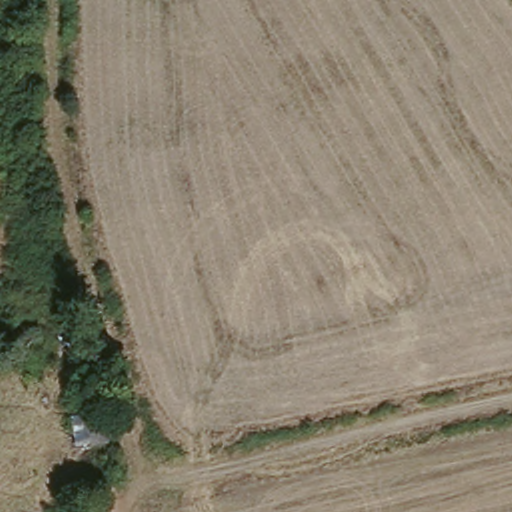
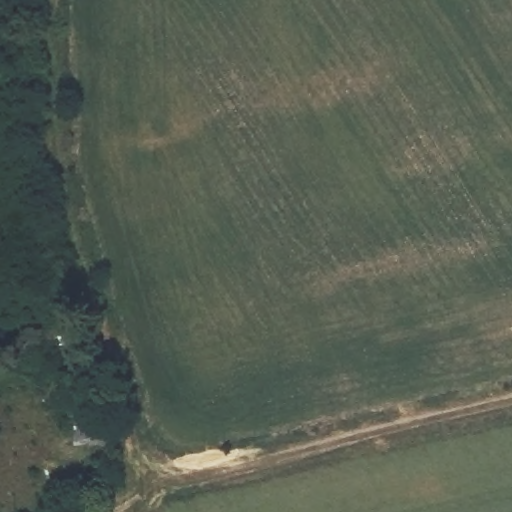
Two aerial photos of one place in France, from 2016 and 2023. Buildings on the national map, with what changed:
unchanged [(79,451),(73,425),(89,422),(90,450),(79,451)]

